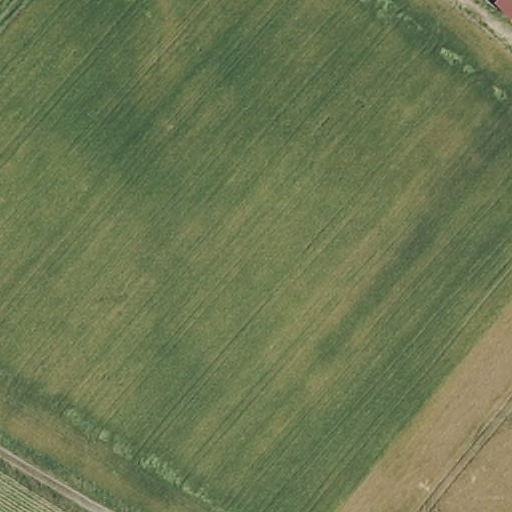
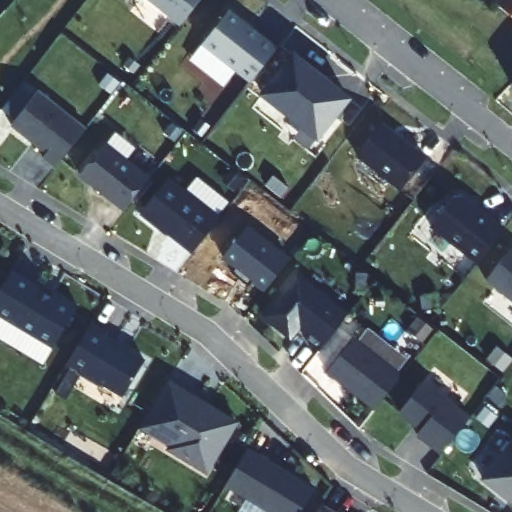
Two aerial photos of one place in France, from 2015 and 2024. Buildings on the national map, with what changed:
new [(182,23),(151,0),(200,0),(182,23)]
unchanged [(497,0),(512,0),(512,11),(497,0)]
new [(251,81),(202,44),(229,8),(278,45),(251,81)]
new [(319,140),(261,93),(294,51),(352,96),(319,140)]
new [(512,85),(512,91),(509,88),(512,85)]
new [(86,126),(56,167),(43,157),(47,153),(11,125),(39,90),(86,126)]
new [(400,189),(358,155),(384,121),(427,155),(400,189)]
new [(124,210),(81,175),(107,141),(150,175),(124,210)]
new [(192,253),(141,213),(172,175),(220,216),(192,253)]
new [(455,196),(464,194),(506,228),(477,262),(431,226),(455,196)]
new [(222,259),(249,224),(291,257),(264,292),(222,259)]
new [(512,246),(512,300),(486,279),(512,246)]
new [(0,315),(0,290),(13,268),(42,286),(41,289),(76,309),(54,346),(0,315)]
new [(295,271),(349,311),(321,349),(308,341),(312,335),(301,327),(291,340),(262,315),(295,271)]
new [(68,363),(94,322),(108,330),(106,333),(147,358),(124,397),(68,363)]
new [(402,374),(375,409),(327,372),(355,337),(402,374)]
new [(168,453),(170,449),(138,430),(166,384),(197,404),(193,410),(200,414),(204,408),(234,426),(205,475),(168,453)]
new [(440,457),(415,438),(419,433),(397,416),(422,384),(468,421),(440,457)]
new [(512,441),(512,502),(482,478),(512,441)]
new [(271,512),(226,484),(248,446),(315,485),(300,512),(271,512)]
new [(339,512),(317,512),(323,502),(339,512)]

